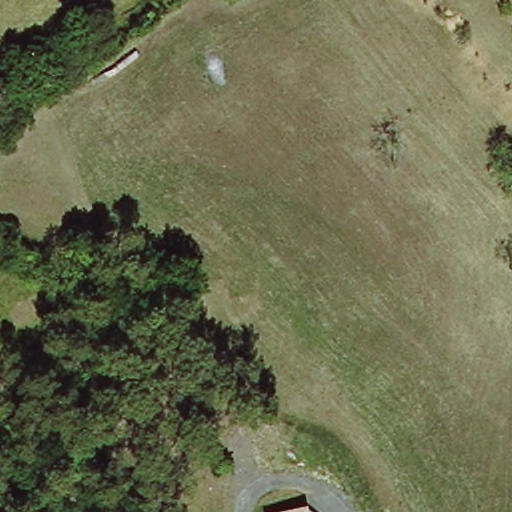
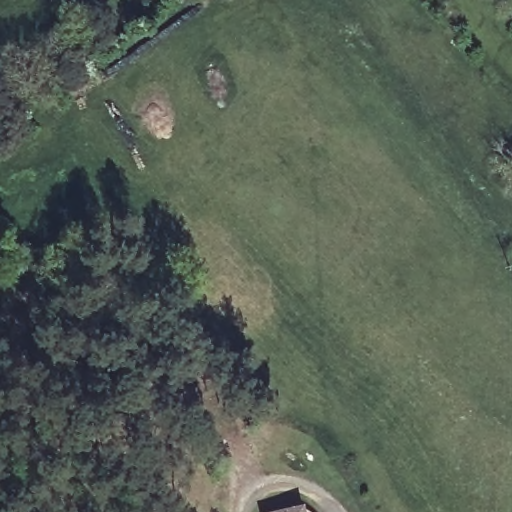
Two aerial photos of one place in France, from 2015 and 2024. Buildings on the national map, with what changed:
unchanged [(307,512),(271,512),(306,505),(307,512)]

